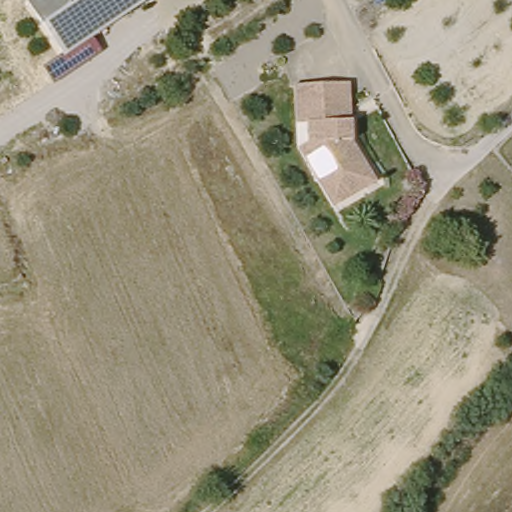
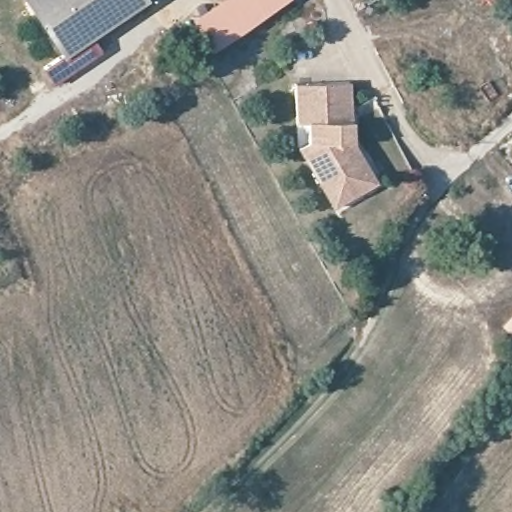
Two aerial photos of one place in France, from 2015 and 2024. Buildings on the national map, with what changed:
unchanged [(135,0),(140,6),(53,57),(20,0),(135,0)]
new [(188,18),(215,0),(286,0),(211,50),(188,18)]
unchanged [(325,209),(307,167),(298,149),(310,142),(310,122),(294,118),(296,79),(319,80),(347,80),(347,104),(347,129),(367,167),(376,182),(346,198),(325,209)]

